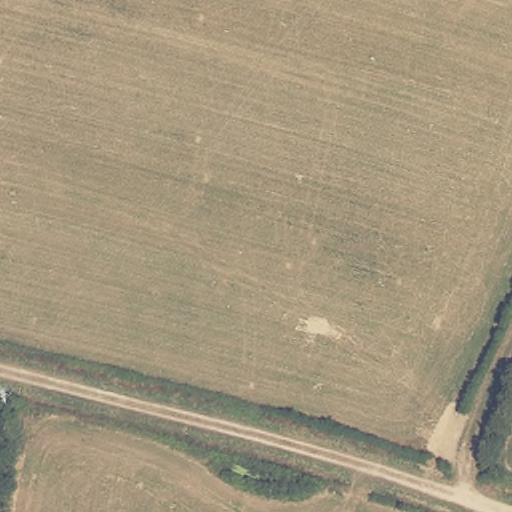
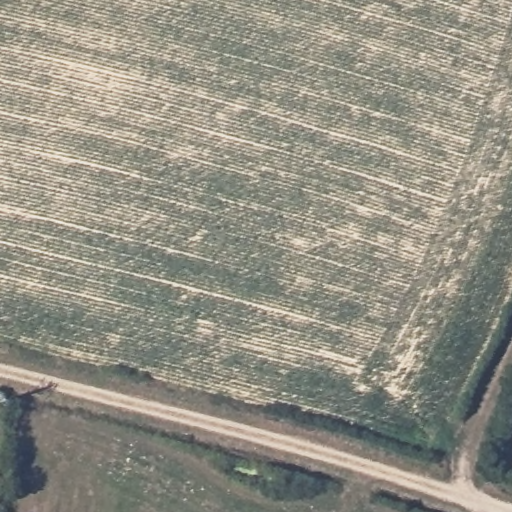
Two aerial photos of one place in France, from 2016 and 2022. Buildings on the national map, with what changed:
[]

